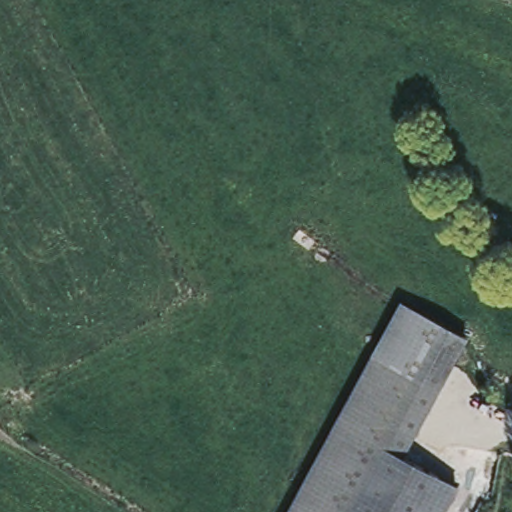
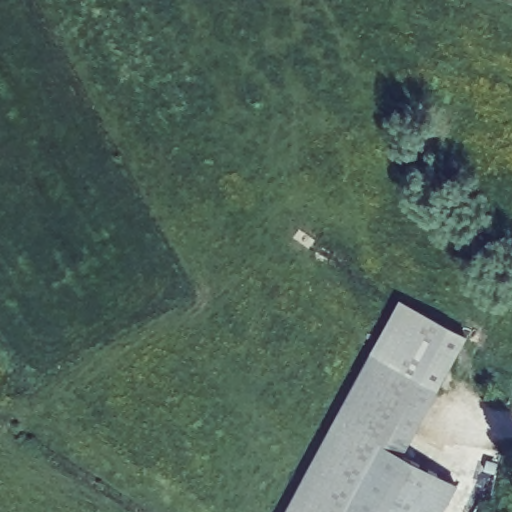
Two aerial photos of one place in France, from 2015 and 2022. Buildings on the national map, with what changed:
unchanged [(395,299),(460,335),(430,389),(366,354),(395,299)]
unchanged [(430,389),(395,454),(450,484),(435,512),(281,512),(366,354),(430,389)]

